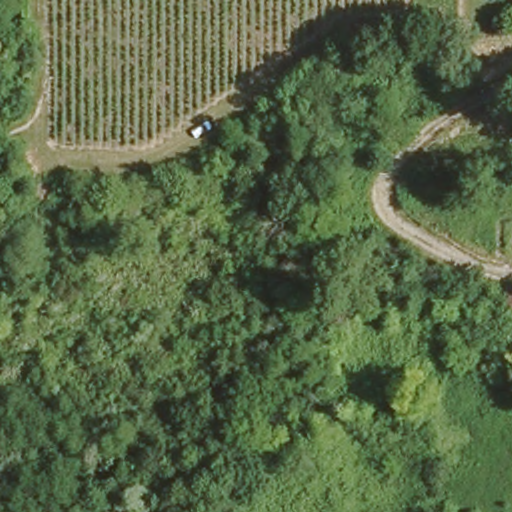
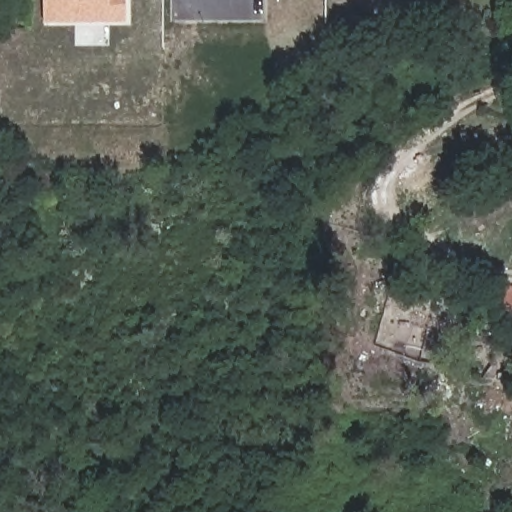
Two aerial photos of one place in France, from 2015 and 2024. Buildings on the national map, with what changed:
new [(52,25),(52,19),(44,19),(44,0),(122,0),(122,25),(52,25)]
unchanged [(507,286),(512,286),(512,312),(506,312),(507,286)]

